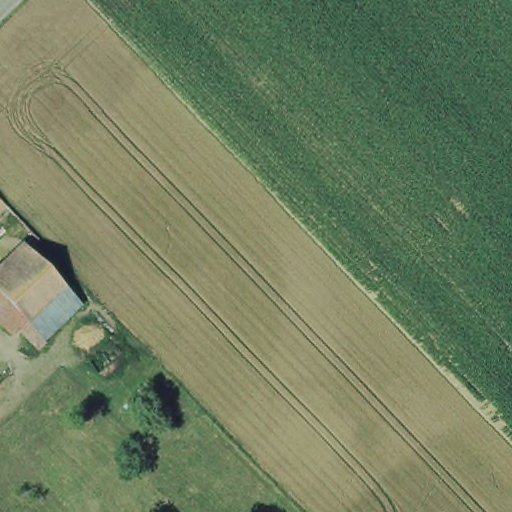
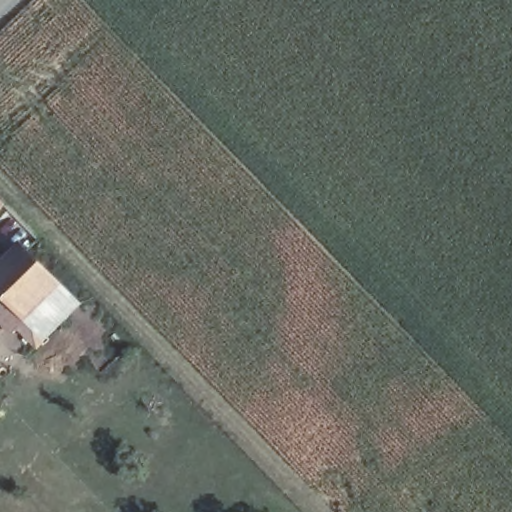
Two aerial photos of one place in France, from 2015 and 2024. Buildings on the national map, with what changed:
unchanged [(5,330),(0,325),(0,261),(16,245),(70,301),(26,343),(9,326),(5,330)]

